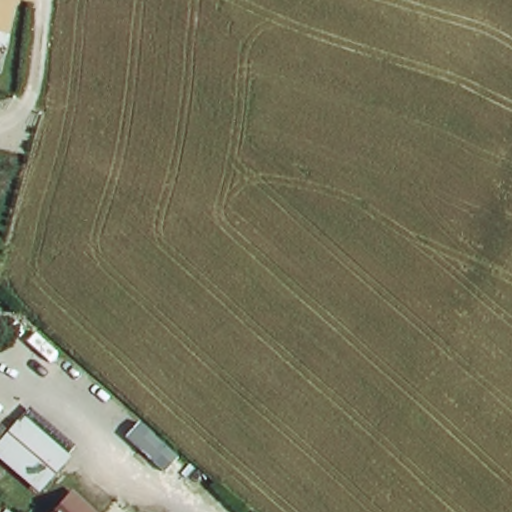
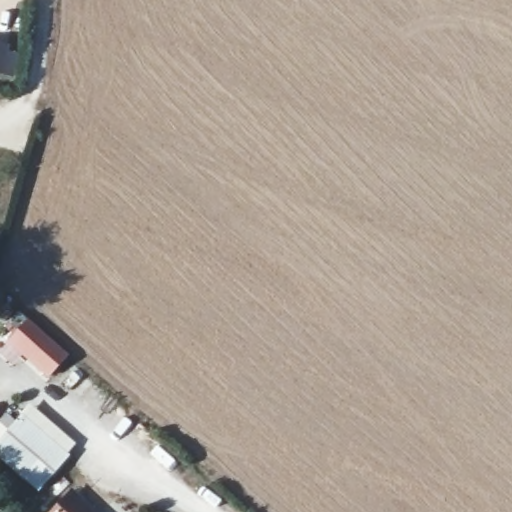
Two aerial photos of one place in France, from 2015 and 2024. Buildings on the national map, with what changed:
new [(10,47),(9,52),(20,55),(13,77),(0,74),(0,44),(10,47)]
new [(47,378),(7,341),(27,319),(68,356),(47,378)]
unchanged [(32,408),(76,447),(38,492),(0,458),(0,441),(32,408)]
unchanged [(98,512),(51,512),(73,488),(98,512)]

